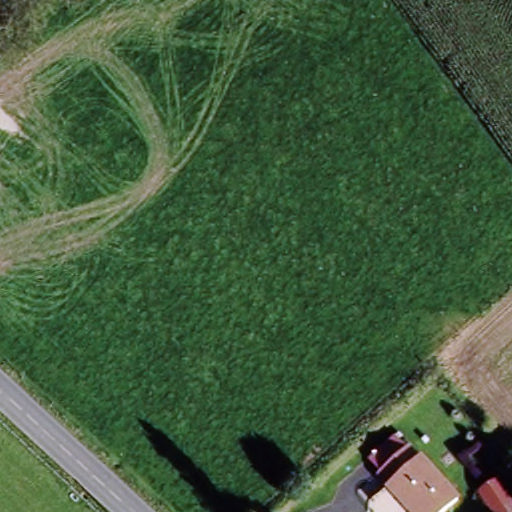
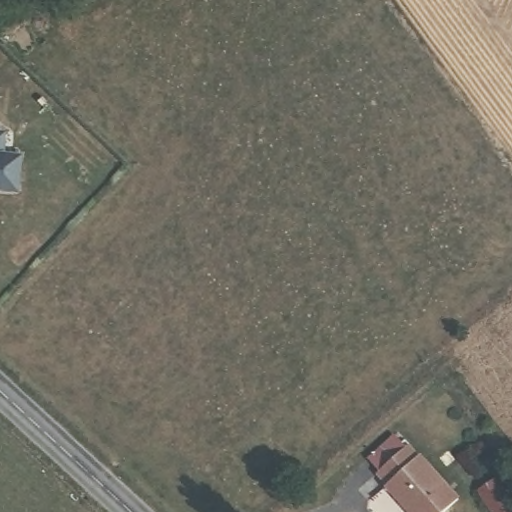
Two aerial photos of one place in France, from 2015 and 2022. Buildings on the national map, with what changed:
unchanged [(0,0),(11,11),(0,20),(0,0)]
new [(3,157),(21,159),(16,198),(0,196),(0,136),(6,136),(3,157)]
unchanged [(412,442),(455,496),(436,512),(413,512),(377,469),(377,463),(370,454),(398,429),(406,441),(412,442)]

